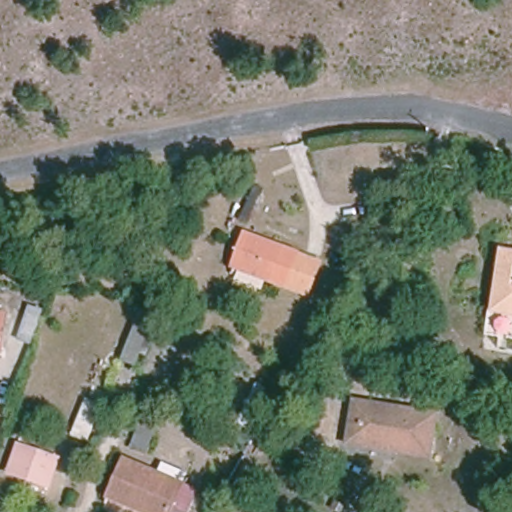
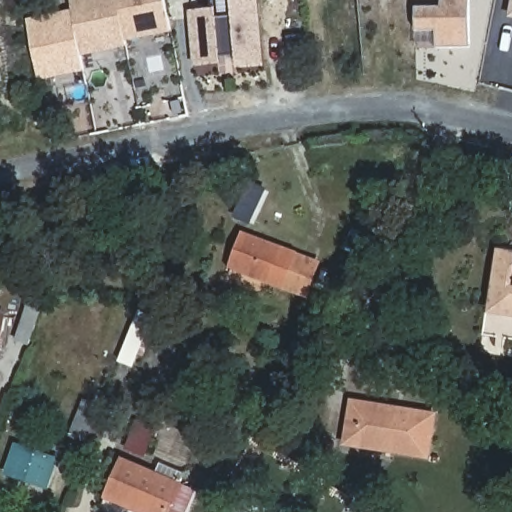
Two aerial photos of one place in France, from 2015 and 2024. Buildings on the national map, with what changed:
new [(129,47),(82,57),(85,71),(38,81),(26,19),(70,9),(69,0),(119,0),(126,39),(129,47)]
new [(172,30),(126,39),(119,0),(166,0),(172,30)]
new [(216,12),(216,19),(237,17),(236,0),(258,0),(263,66),(241,67),(240,57),(220,57),(220,62),(198,64),(194,14),(216,12)]
new [(438,47),(439,30),(418,31),(416,7),(443,7),(443,0),(468,0),(468,47),(438,47)]
new [(3,79),(0,80),(0,66),(3,79)]
unchanged [(303,256),(291,289),(220,262),(233,230),(303,256)]
unchanged [(512,253),(512,313),(491,310),(500,251),(512,253)]
unchanged [(34,340),(33,342),(19,337),(31,302),(45,307),(34,340)]
unchanged [(3,315),(0,339),(0,315),(3,315)]
unchanged [(353,402),(434,415),(427,457),(346,443),(353,402)]
unchanged [(57,457),(47,487),(8,475),(18,445),(57,457)]
unchanged [(168,512),(142,512),(122,503),(108,496),(125,459),(136,465),(180,485),(168,512)]

